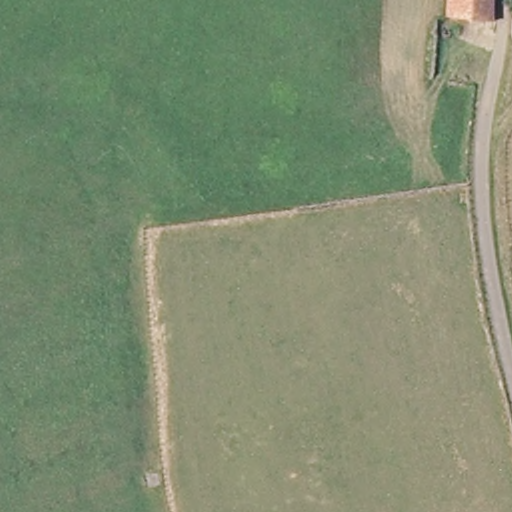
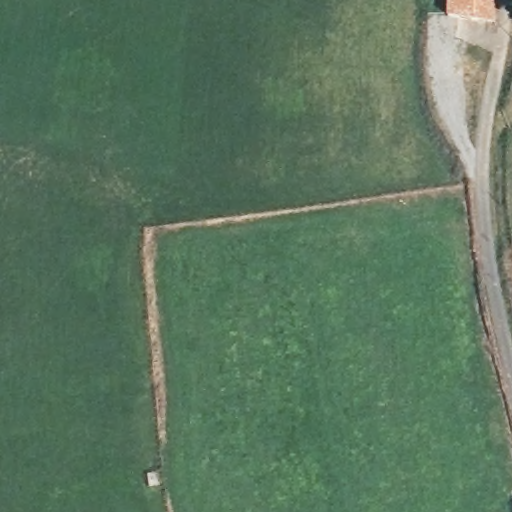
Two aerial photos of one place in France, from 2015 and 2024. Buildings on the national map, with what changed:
unchanged [(492,17),(446,18),(446,0),(492,0),(492,17)]

